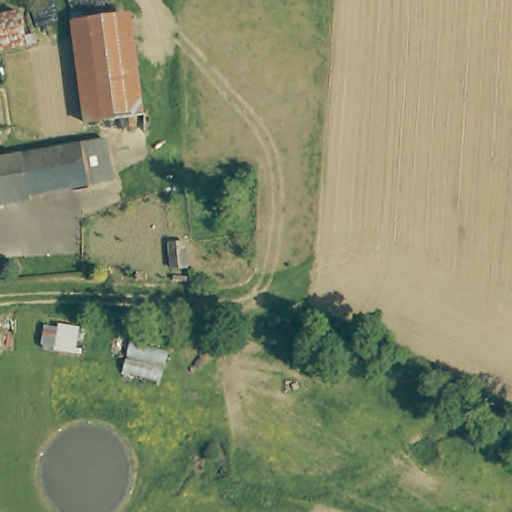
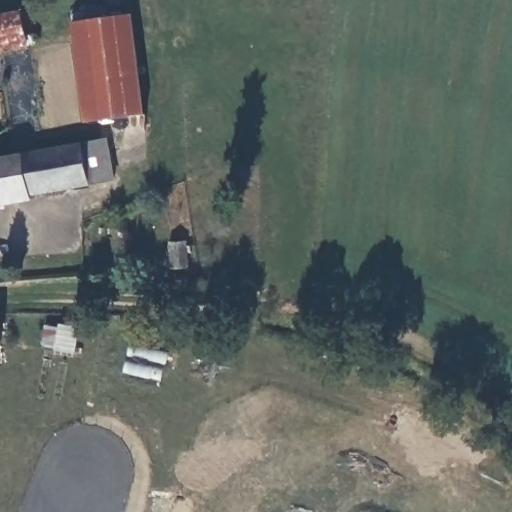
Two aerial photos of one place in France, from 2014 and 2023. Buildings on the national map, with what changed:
unchanged [(25,42),(0,47),(0,15),(17,11),(25,42)]
unchanged [(127,16),(140,117),(89,123),(78,34),(77,21),(127,16)]
unchanged [(117,180),(35,195),(35,200),(0,206),(0,158),(110,140),(117,180)]

